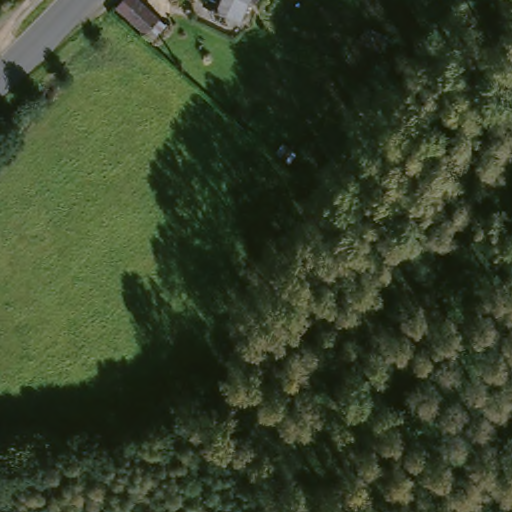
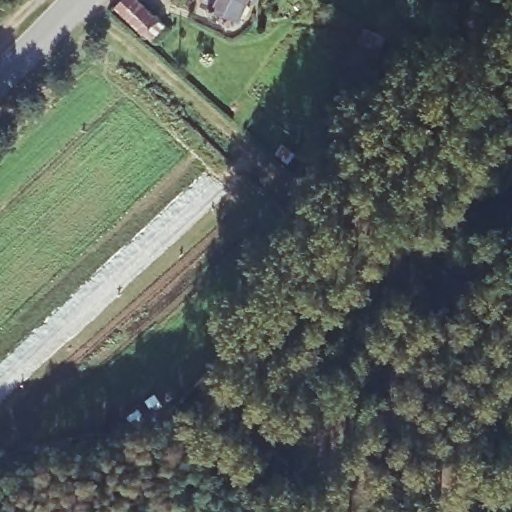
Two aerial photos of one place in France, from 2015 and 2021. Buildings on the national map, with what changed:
unchanged [(142,49),(109,22),(123,0),(159,27),(142,49)]
unchanged [(198,4),(199,0),(262,0),(257,10),(249,6),(242,24),(229,18),(198,4)]

